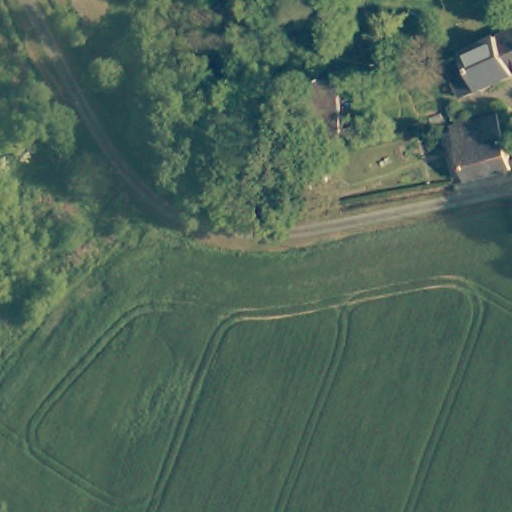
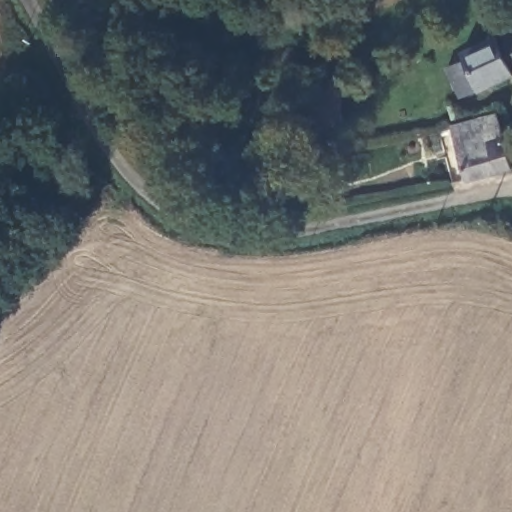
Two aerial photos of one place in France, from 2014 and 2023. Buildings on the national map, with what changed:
unchanged [(512,27),(512,34),(510,28),(512,27)]
unchanged [(465,46),(468,46),(510,28),(512,34),(512,75),(479,88),(469,58),(465,46)]
unchanged [(512,168),(466,178),(453,124),(452,122),(496,111),(498,119),(512,160),(512,168)]

